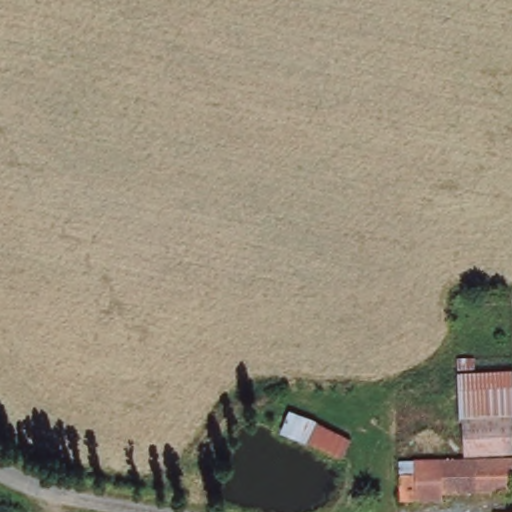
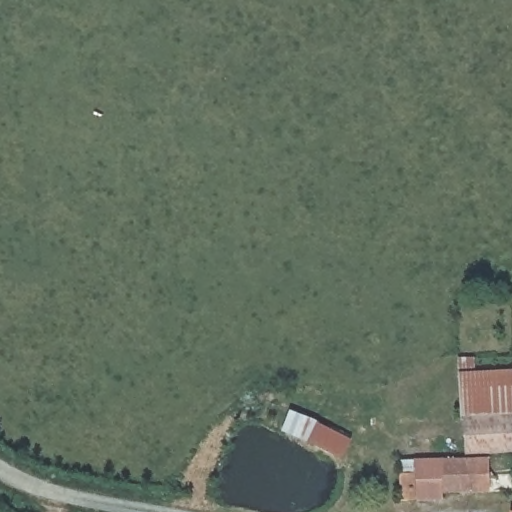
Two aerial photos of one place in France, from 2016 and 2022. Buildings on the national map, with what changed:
unchanged [(467,418),(464,418),(461,372),(459,357),(477,357),(479,372),(512,369),(512,417),(467,418)]
unchanged [(351,437),(343,456),(285,427),(294,408),(351,437)]
unchanged [(469,452),(467,418),(512,417),(512,450),(469,452)]
unchanged [(402,457),(512,455),(512,491),(475,490),(446,489),(445,498),(402,501),(402,496),(402,457)]
unchanged [(512,511),(512,512),(498,512),(498,511),(512,511)]

